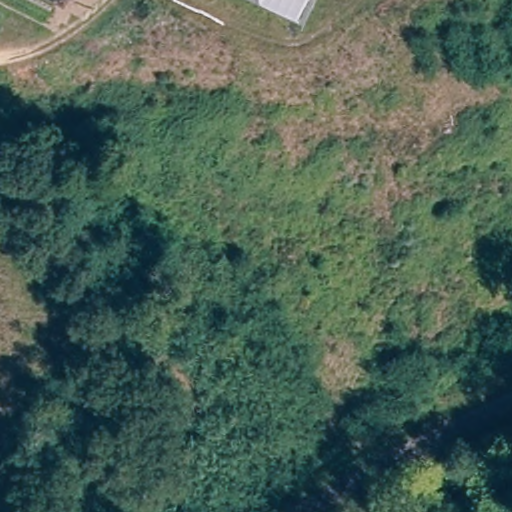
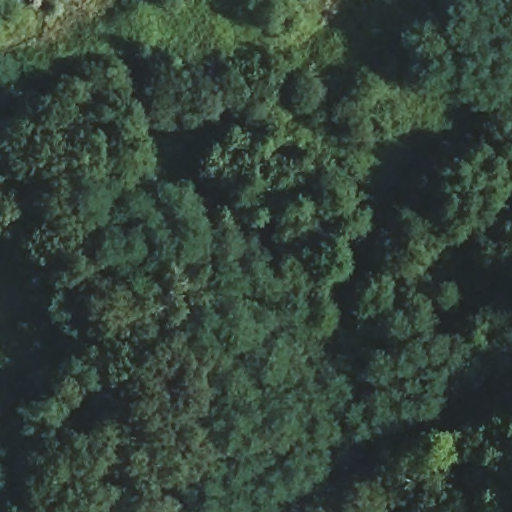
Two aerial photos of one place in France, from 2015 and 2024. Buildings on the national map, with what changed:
demolished [(308,26),(254,0),(320,0),(308,26)]

